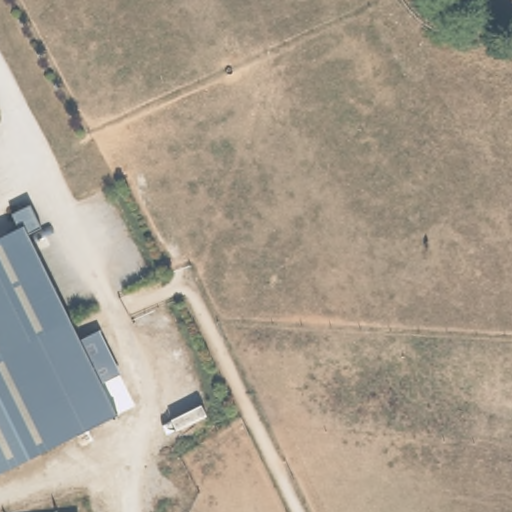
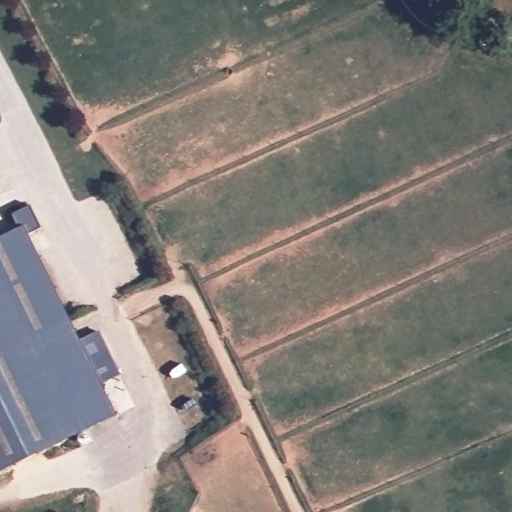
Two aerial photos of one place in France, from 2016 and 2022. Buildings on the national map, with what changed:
unchanged [(35,340),(81,434),(0,473),(0,239),(25,227),(17,213),(36,204),(47,227),(34,234),(76,321),(35,340)]
unchanged [(76,321),(121,415),(81,434),(35,340),(76,321)]

